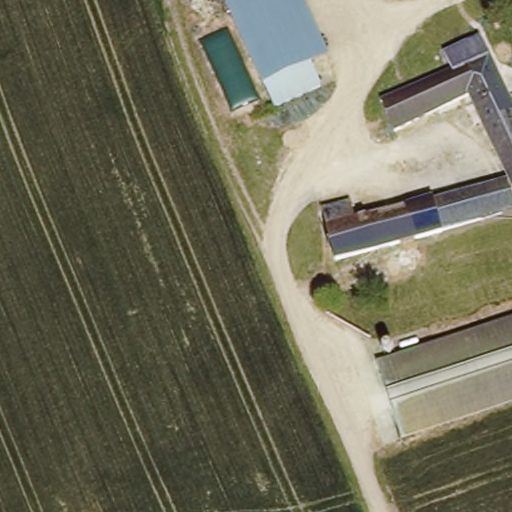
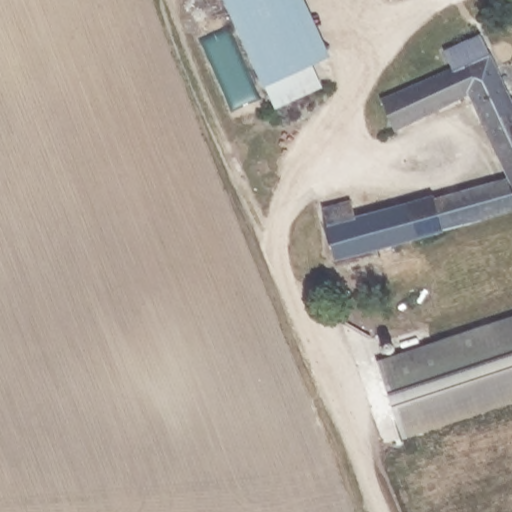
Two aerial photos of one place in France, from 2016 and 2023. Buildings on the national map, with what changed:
unchanged [(312,69),(264,90),(223,0),(301,0),(330,62),(312,69)]
unchanged [(413,89),(456,71),(447,50),(488,33),(495,55),(512,99),(512,184),(473,103),(435,115),(397,131),(380,88),(405,77),(413,89)]
unchanged [(323,94),(275,115),(264,90),(312,69),(323,94)]
unchanged [(442,237),(335,264),(321,214),(352,205),(358,222),(505,184),(512,204),(512,216),(502,219),(501,225),(488,229),(485,223),(479,225),(465,229),(442,237)]
unchanged [(401,443),(375,367),(382,364),(378,349),(392,347),(398,359),(512,321),(512,406),(401,443)]

